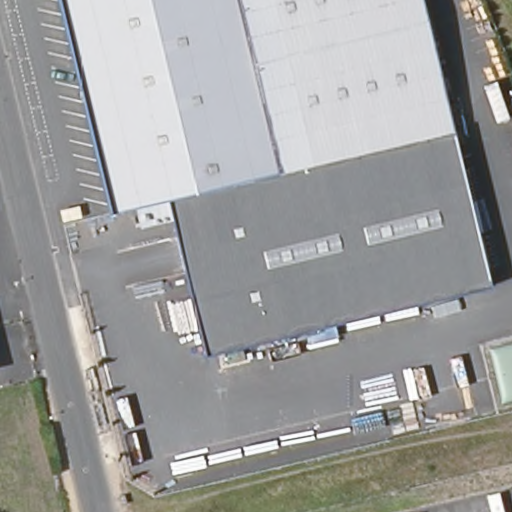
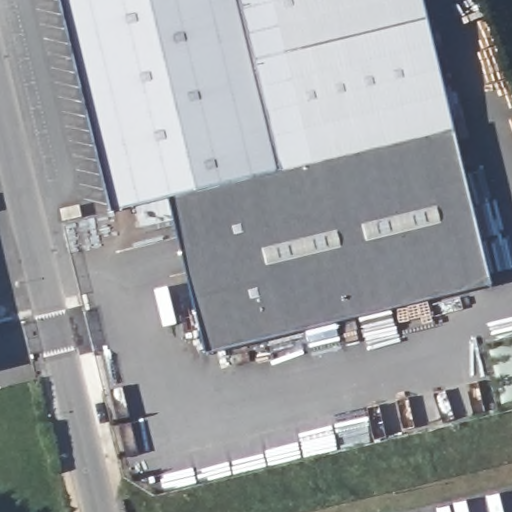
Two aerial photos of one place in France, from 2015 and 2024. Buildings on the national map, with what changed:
unchanged [(472,216),(489,287),(370,316),(201,356),(185,286),(164,199),(106,213),(55,0),(420,0),(472,216)]
unchanged [(90,201),(92,212),(72,217),(70,207),(70,206),(90,201)]

